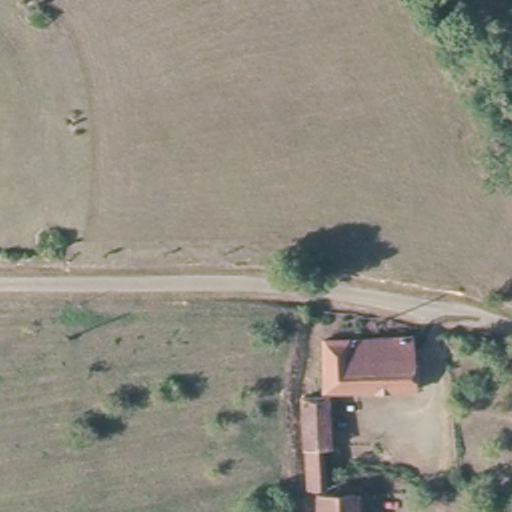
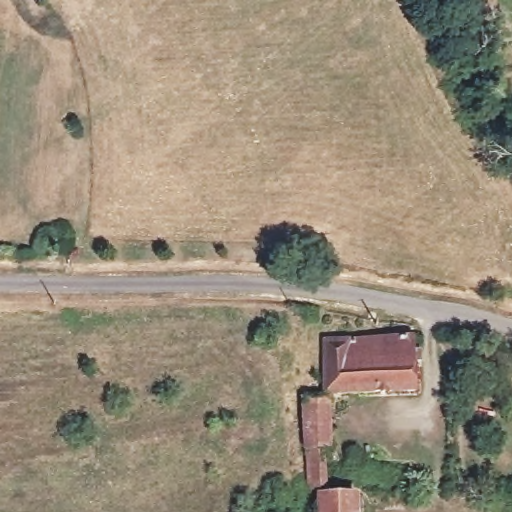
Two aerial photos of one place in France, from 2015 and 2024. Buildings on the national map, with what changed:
unchanged [(415,336),(418,391),(328,393),(324,339),(415,336)]
unchanged [(332,398),(335,446),(324,447),(327,488),(309,489),(303,398),(332,398)]
unchanged [(318,492),(357,492),(357,512),(318,512),(318,492)]

